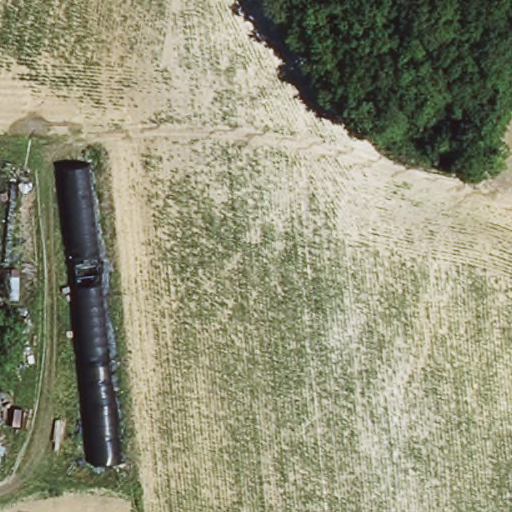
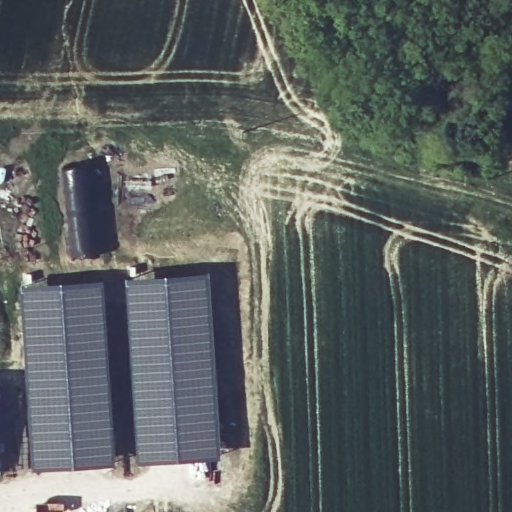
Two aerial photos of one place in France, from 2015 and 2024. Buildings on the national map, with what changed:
demolished [(60,165),(91,162),(121,460),(93,465),(60,165)]
new [(216,455),(135,461),(121,281),(200,275),(216,455)]
new [(111,462),(30,468),(16,289),(98,283),(111,462)]

